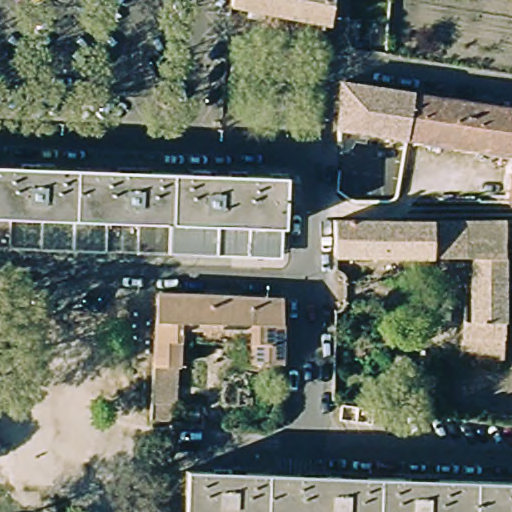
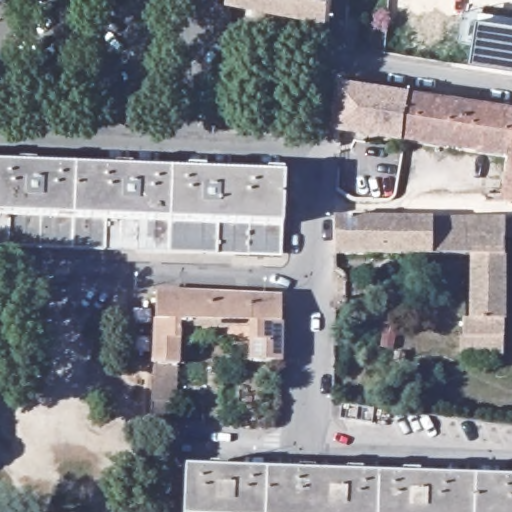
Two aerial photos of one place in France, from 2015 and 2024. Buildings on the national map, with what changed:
unchanged [(233,0),(335,0),(333,22),(233,3),(233,0)]
new [(512,26),(512,71),(476,66),(483,22),(512,26)]
unchanged [(405,137),(338,126),(343,81),(412,92),(405,137)]
unchanged [(405,137),(412,92),(512,108),(512,154),(405,137)]
unchanged [(508,201),(512,164),(512,201),(508,201)]
unchanged [(0,169),(19,170),(50,171),(113,173),(146,174),(205,176),(236,177),(284,179),(281,255),(0,244),(0,169)]
unchanged [(512,220),(512,254),(509,359),(468,357),(470,318),(474,318),(475,255),(341,255),(341,220),(512,220)]
unchanged [(280,358),(269,357),(250,357),(250,345),(248,340),(248,337),(243,337),(183,336),(180,337),(178,344),(176,360),(154,358),(156,290),(271,293),(281,293),(280,358)]
unchanged [(154,358),(176,360),(175,417),(152,417),(154,358)]
unchanged [(188,469),(270,471),(269,512),(186,512),(188,469)]
unchanged [(336,473),(335,512),(269,512),(270,471),(336,473)]
unchanged [(336,473),(512,480),(512,512),(335,512),(336,473)]

